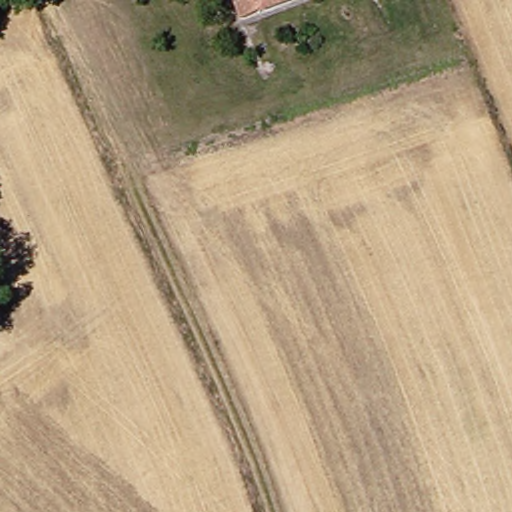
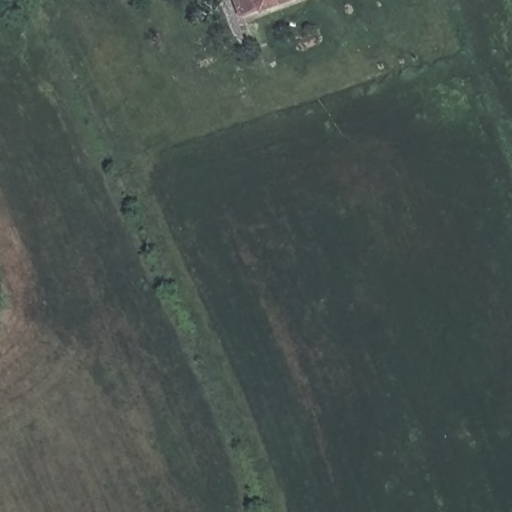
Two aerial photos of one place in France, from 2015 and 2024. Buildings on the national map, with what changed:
unchanged [(228,0),(300,0),(301,1),(232,18),(228,0)]

